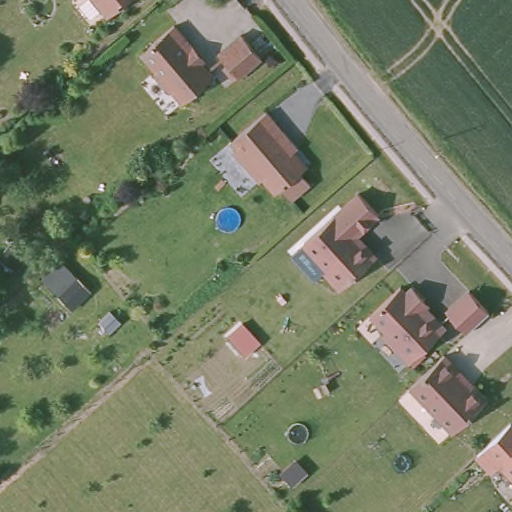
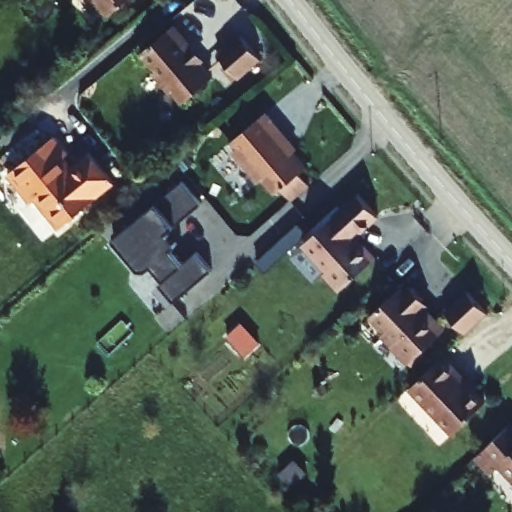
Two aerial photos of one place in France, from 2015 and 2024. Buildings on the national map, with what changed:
unchanged [(97,0),(128,0),(110,15),(97,0)]
unchanged [(213,77),(182,102),(172,90),(170,92),(153,72),(156,70),(142,52),(175,26),(192,47),(189,49),(213,77)]
unchanged [(262,58),(238,77),(220,55),(242,35),(262,58)]
unchanged [(307,162),(301,167),(311,179),(293,194),(283,182),(277,187),(264,172),(260,176),(234,145),(238,142),(232,136),(267,107),(282,125),(278,127),(307,162)]
new [(92,155),(112,179),(97,198),(76,215),(69,206),(55,217),(46,207),(42,210),(17,176),(35,161),(32,156),(52,140),(72,165),(92,155)]
new [(202,204),(168,232),(178,244),(172,249),(184,263),(197,252),(213,270),(175,302),(159,284),(165,279),(153,266),(148,270),(140,269),(114,239),(183,181),(202,204)]
unchanged [(377,257),(340,290),(325,272),(328,270),(304,243),(359,193),(379,215),(355,237),(361,245),(365,245),(377,257)]
unchanged [(17,270),(0,258),(12,242),(28,254),(17,270)]
unchanged [(447,328),(410,362),(383,334),(387,331),(371,316),(400,287),(406,293),(413,287),(425,299),(420,305),(431,316),(433,315),(447,328)]
demolished [(110,332),(100,322),(110,312),(120,322),(110,332)]
unchanged [(485,402),(453,432),(410,387),(444,356),(456,368),(454,370),(485,402)]
unchanged [(492,473),(476,457),(510,425),(512,427),(512,479),(500,466),(492,473)]

